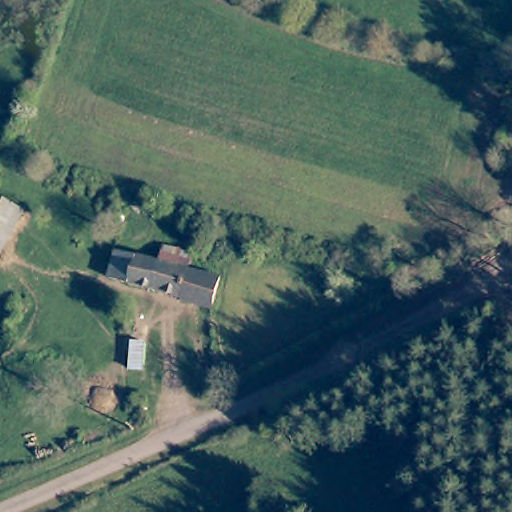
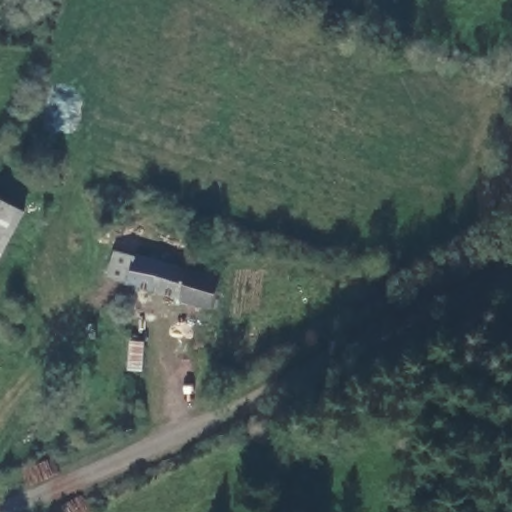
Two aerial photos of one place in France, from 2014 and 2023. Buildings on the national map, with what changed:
unchanged [(0,201),(23,215),(0,258),(0,201)]
unchanged [(107,278),(114,252),(159,265),(165,266),(168,247),(197,255),(193,273),(222,281),(215,310),(185,301),(186,298),(153,290),(107,278)]

